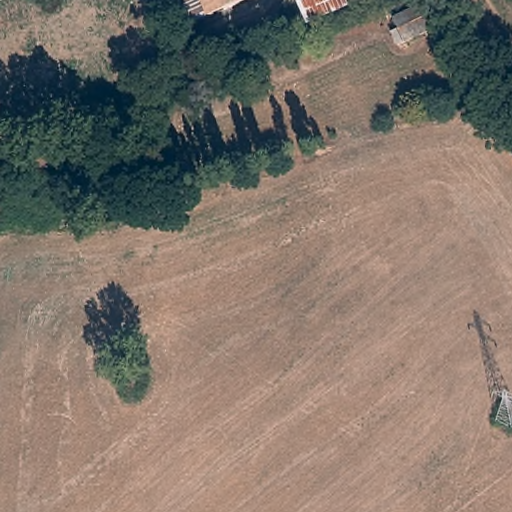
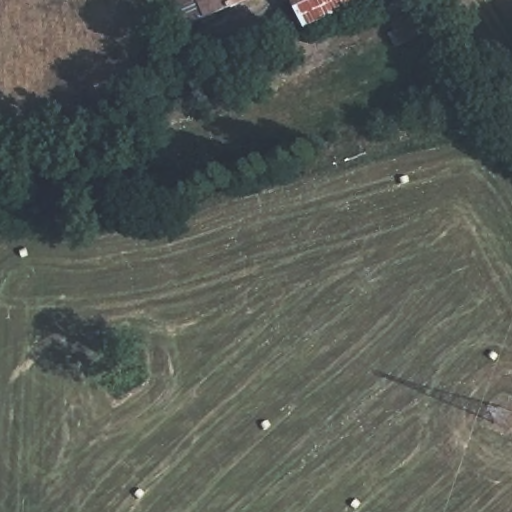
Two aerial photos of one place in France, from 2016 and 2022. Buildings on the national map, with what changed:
unchanged [(262,1),(190,30),(178,0),(261,0),(262,1)]
unchanged [(308,25),(306,21),(297,0),(373,0),(308,25)]
unchanged [(422,5),(432,30),(401,42),(389,19),(422,5)]

